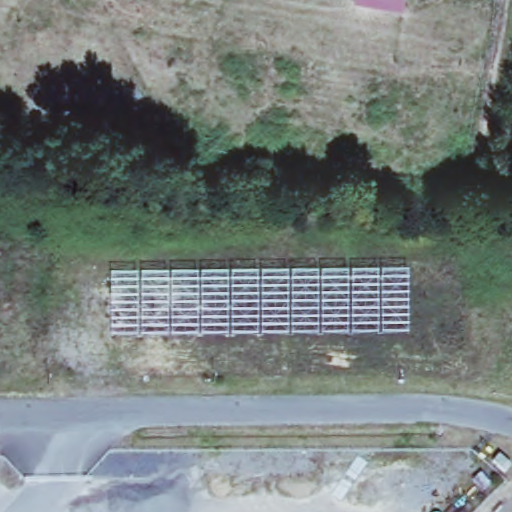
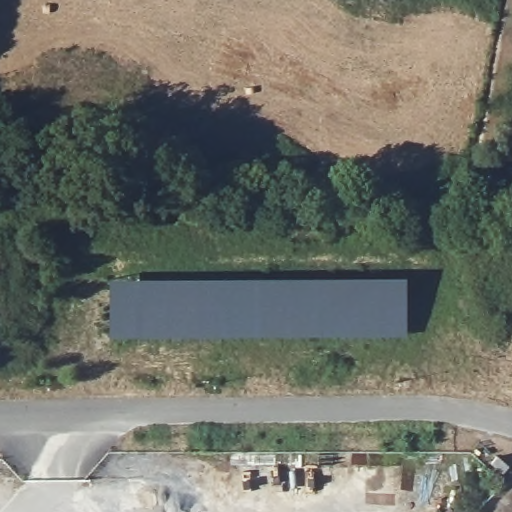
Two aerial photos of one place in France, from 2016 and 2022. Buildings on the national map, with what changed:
unchanged [(406,6),(369,0),(407,0),(406,6)]
new [(112,337),(111,278),(407,276),(407,334),(112,337)]

